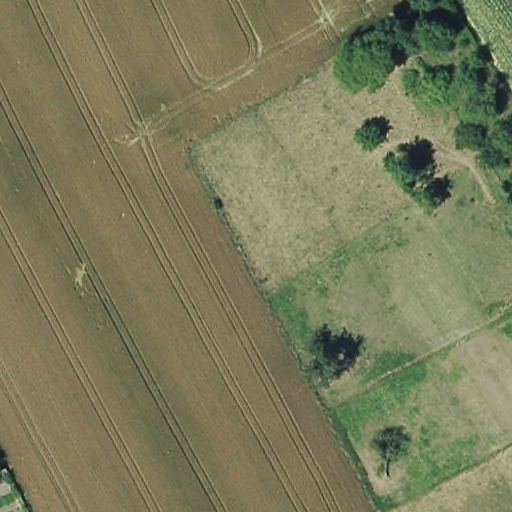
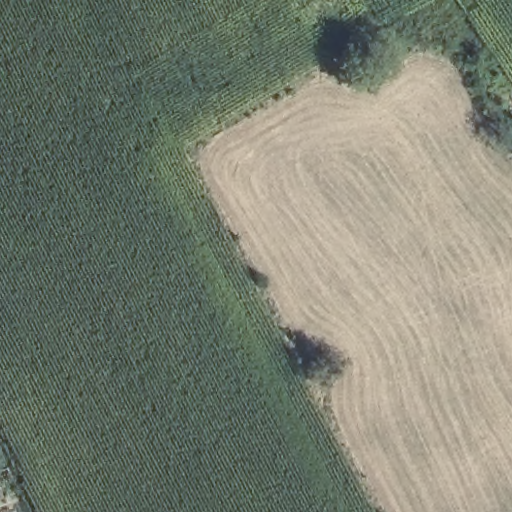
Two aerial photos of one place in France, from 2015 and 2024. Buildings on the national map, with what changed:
[]

